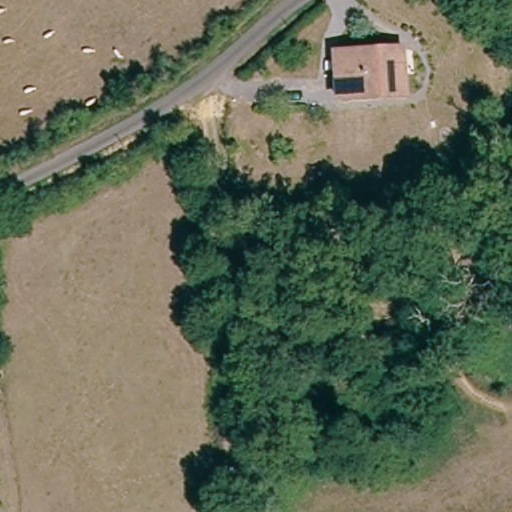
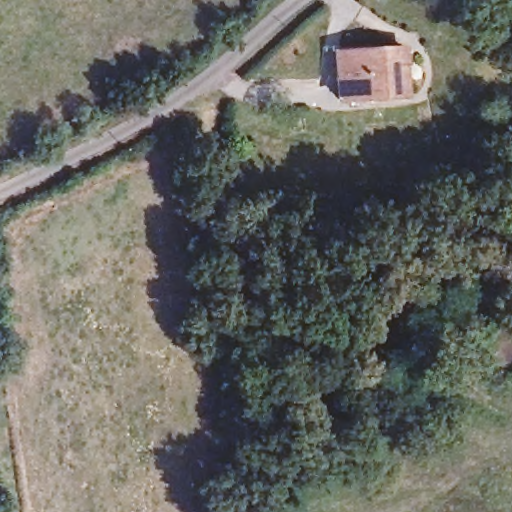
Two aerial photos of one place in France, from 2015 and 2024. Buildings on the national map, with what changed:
unchanged [(394,39),(401,91),(337,100),(330,48),(394,39)]

